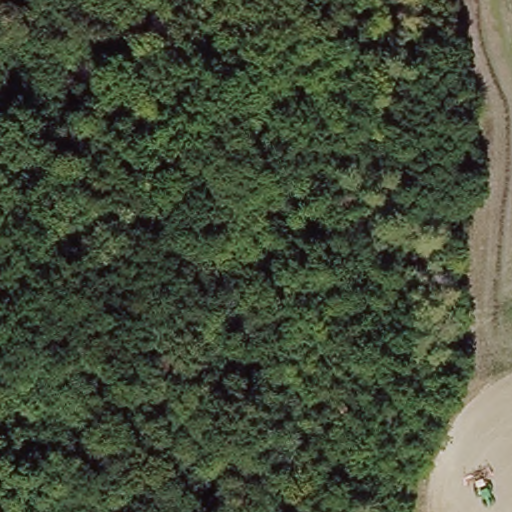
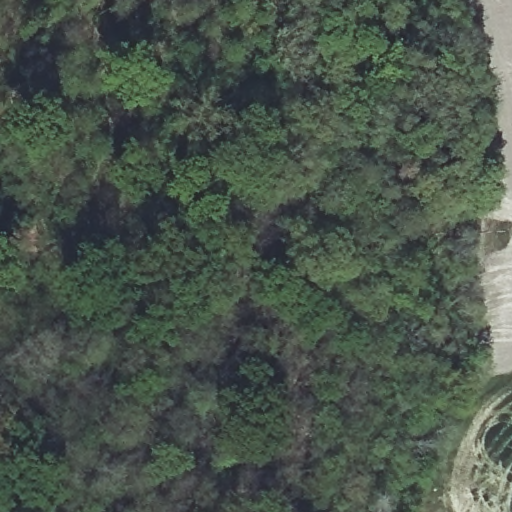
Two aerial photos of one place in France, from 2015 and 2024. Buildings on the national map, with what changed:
[]

